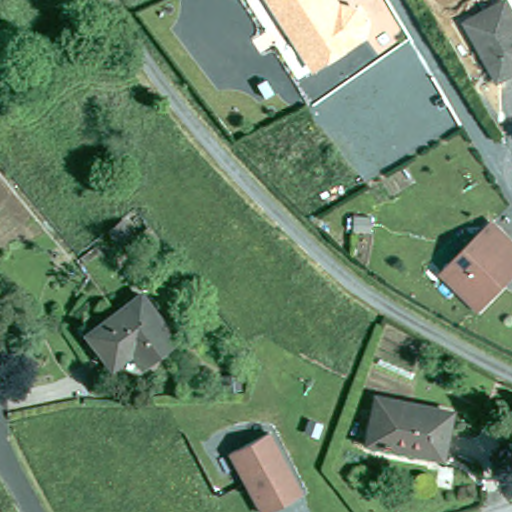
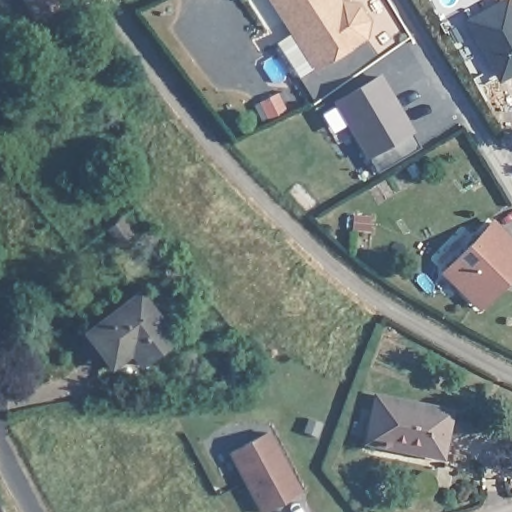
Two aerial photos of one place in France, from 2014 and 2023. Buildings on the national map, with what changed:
new [(34,21),(23,0),(61,0),(63,5),(34,21)]
unchanged [(361,4),(373,21),(368,40),(316,73),(270,0),(343,0),(344,1),(361,4)]
unchanged [(473,25),(508,6),(512,13),(512,75),(503,80),(473,25)]
new [(412,131),(421,146),(378,170),(370,157),(366,159),(333,101),(382,72),(415,129),(412,131)]
unchanged [(449,276),(499,222),(512,234),(512,283),(483,312),(449,276)]
unchanged [(141,364),(132,351),(118,362),(104,345),(99,349),(87,331),(141,291),(176,338),(141,364)]
unchanged [(448,457),(379,449),(375,447),(372,443),(376,408),(452,417),(448,457)]
unchanged [(271,429),(306,491),(269,512),(259,512),(228,452),(271,429)]

